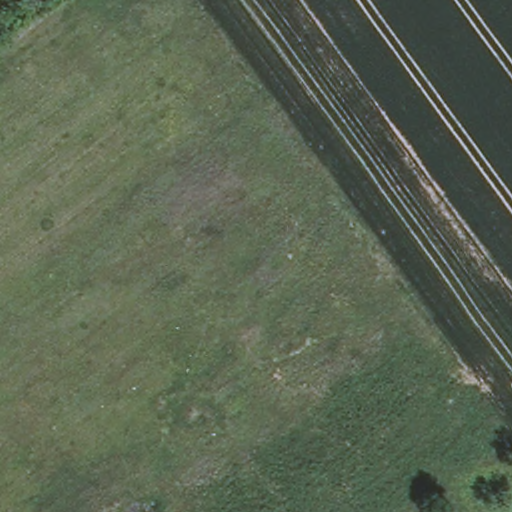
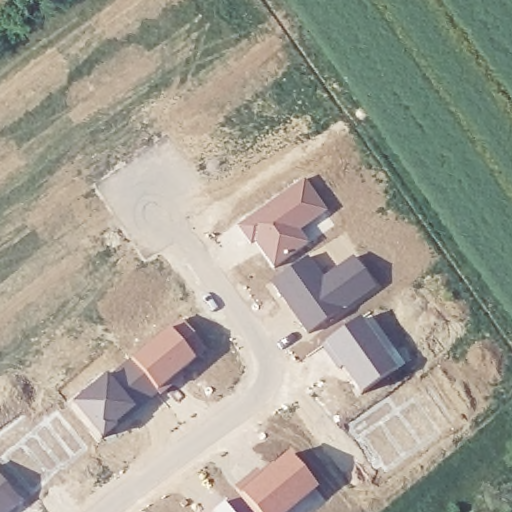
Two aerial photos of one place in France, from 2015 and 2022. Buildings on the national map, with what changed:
new [(305,176),(327,210),(300,229),(310,241),(272,266),(255,240),(250,242),(237,225),(305,176)]
new [(310,255),(323,277),(355,255),(377,285),(309,334),(269,281),(310,255)]
new [(361,314),(400,369),(360,392),(326,341),(361,314)]
new [(184,319),(209,352),(101,436),(72,401),(184,319)]
new [(397,413),(415,401),(440,436),(383,473),(350,428),(388,401),(397,413)]
new [(2,458),(58,414),(85,449),(32,494),(2,458)]
new [(293,449),(319,484),(285,512),(262,512),(243,490),(293,449)]
new [(22,499),(7,512),(0,512),(0,475),(22,499)]
new [(213,508),(226,500),(237,512),(217,512),(213,508)]

